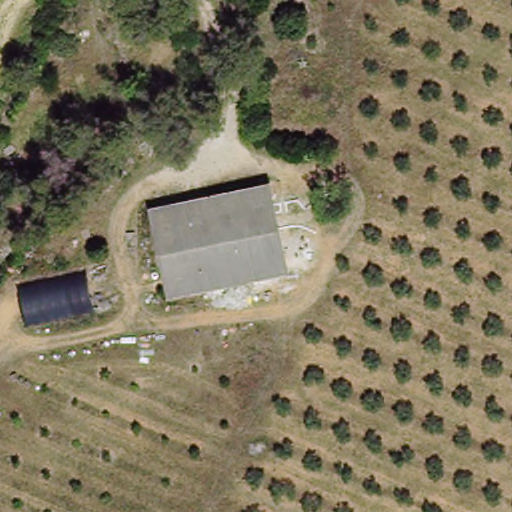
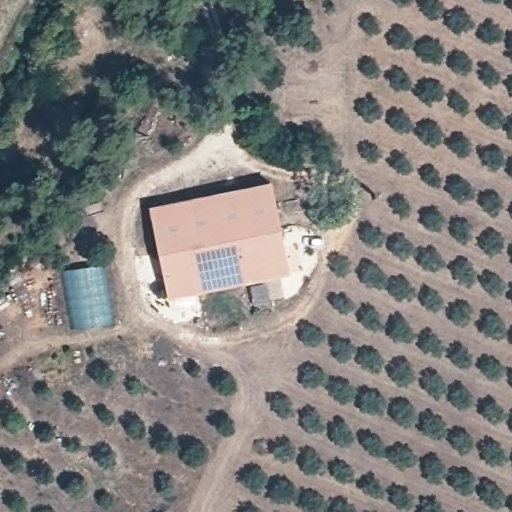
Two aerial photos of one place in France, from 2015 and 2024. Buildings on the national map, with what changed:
unchanged [(273,179),(278,200),(291,273),(173,293),(155,200),(225,188),(273,179)]
new [(63,271),(104,265),(115,325),(73,330),(63,271)]

